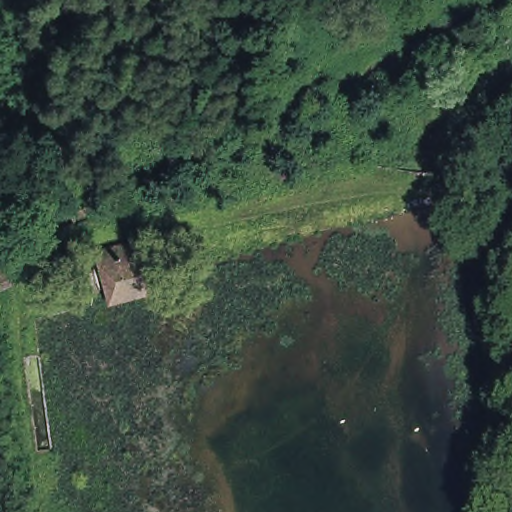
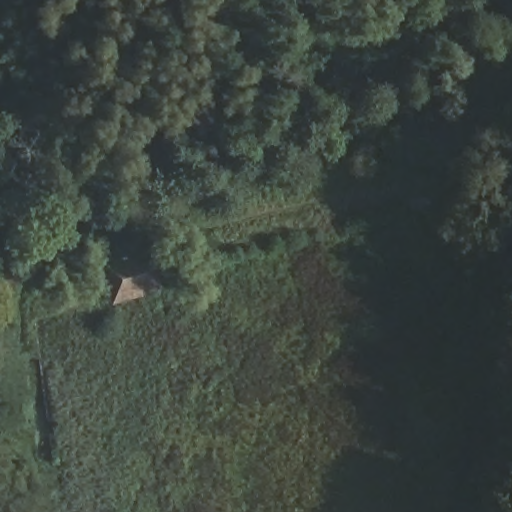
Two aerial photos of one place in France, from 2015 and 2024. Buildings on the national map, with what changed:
unchanged [(147,280),(112,289),(110,279),(105,280),(97,250),(135,239),(147,280)]
unchanged [(13,307),(0,308),(0,245),(14,245),(13,307)]

